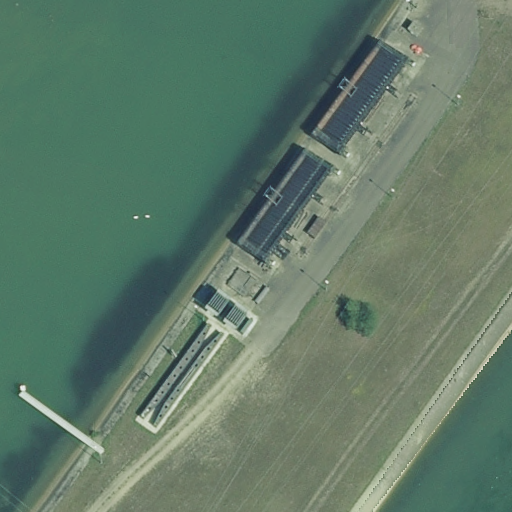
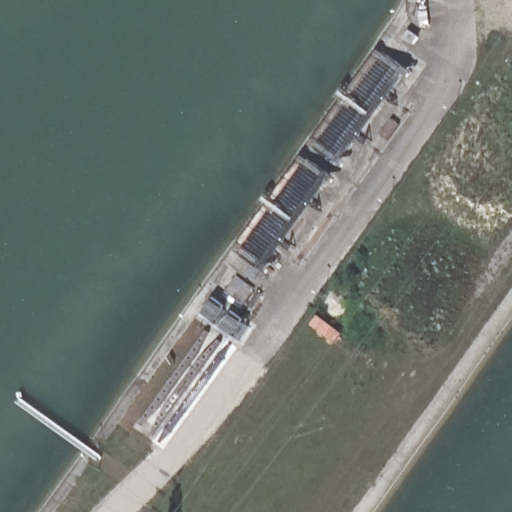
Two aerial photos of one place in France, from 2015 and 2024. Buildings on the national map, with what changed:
unchanged [(408,73),(342,162),(321,146),(387,55),(408,73)]
unchanged [(332,177),(268,268),(247,254),(312,163),(332,177)]

